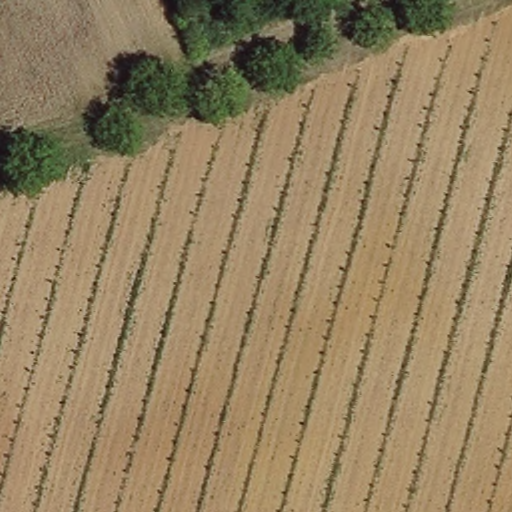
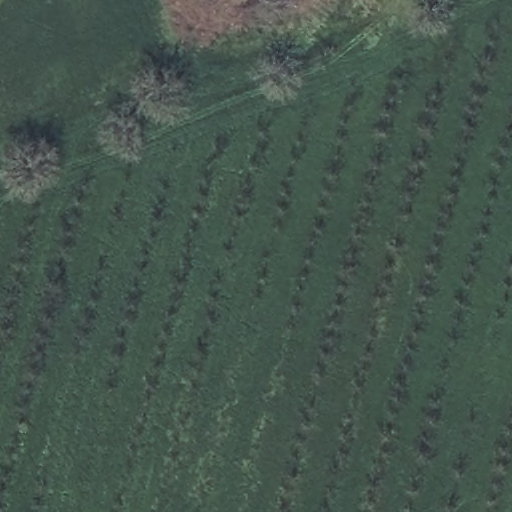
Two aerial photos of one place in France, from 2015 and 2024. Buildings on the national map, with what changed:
[]

